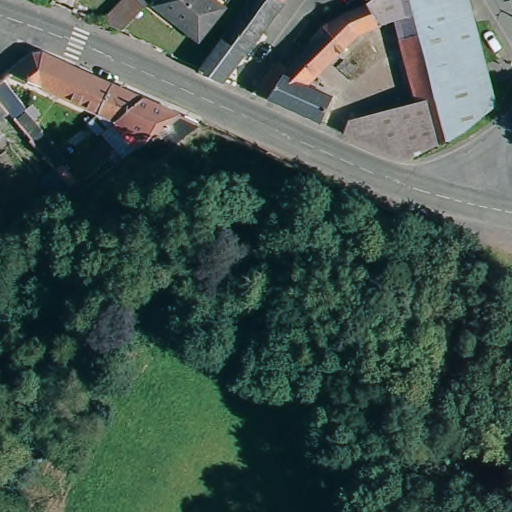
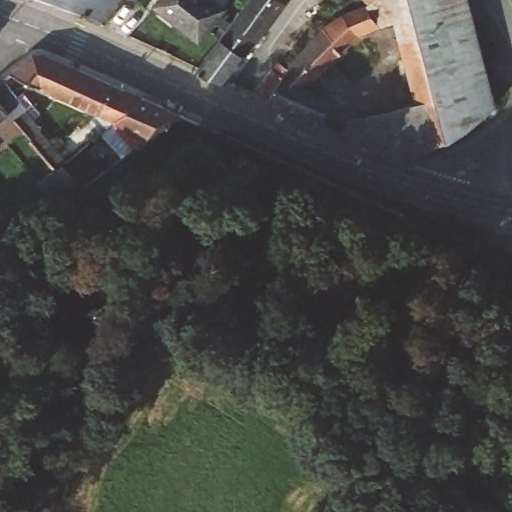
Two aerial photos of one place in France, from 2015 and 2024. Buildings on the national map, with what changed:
unchanged [(215,0),(227,10),(202,38),(158,5),(162,0),(215,0)]
unchanged [(220,36),(247,0),(284,0),(258,36),(227,80),(220,81),(198,71),(200,69),(223,37),(220,36)]
unchanged [(415,106),(395,21),(370,1),(374,0),(471,0),(497,103),(455,136),(408,158),(405,158),(402,158),(344,131),(350,118),(352,119),(397,106),(397,111),(415,106)]
unchanged [(369,0),(372,0),(370,1),(369,0)]
unchanged [(372,0),(374,0),(370,1),(372,0)]
unchanged [(274,65),(295,39),(305,45),(327,24),(340,15),(354,8),(370,1),(395,21),(359,35),(310,85),(333,96),(323,121),(282,104),(270,99),(253,91),(274,65)]
unchanged [(113,121),(97,134),(87,123),(99,114),(8,73),(30,51),(45,50),(143,96),(113,121)]
unchanged [(2,79),(23,103),(9,115),(0,122),(0,81),(2,79)]
unchanged [(150,163),(136,148),(145,140),(113,121),(143,96),(200,121),(150,163)]
unchanged [(38,180),(55,167),(14,121),(25,112),(67,161),(57,169),(77,193),(60,206),(38,180)]

